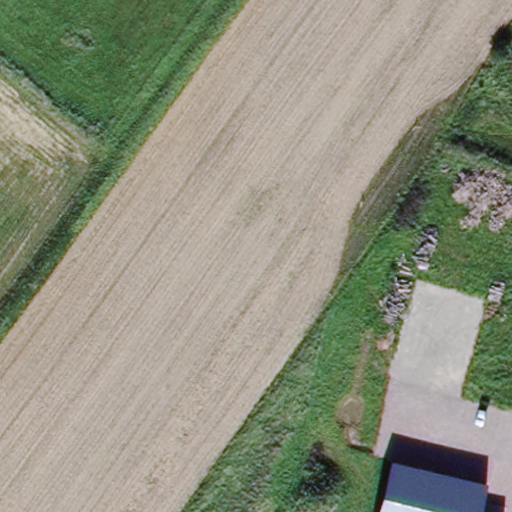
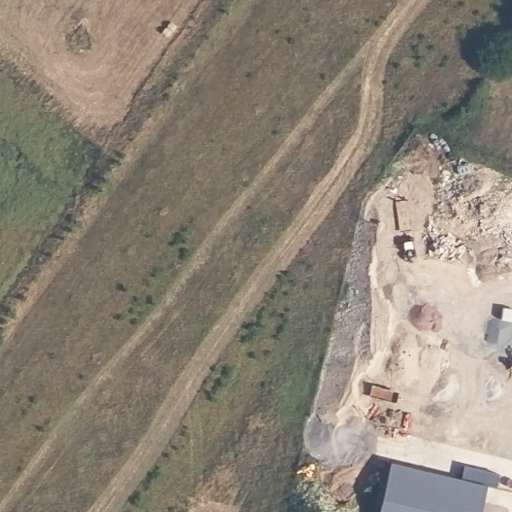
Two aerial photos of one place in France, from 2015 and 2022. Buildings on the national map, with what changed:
unchanged [(482,512),(378,512),(390,462),(486,485),(482,512)]

